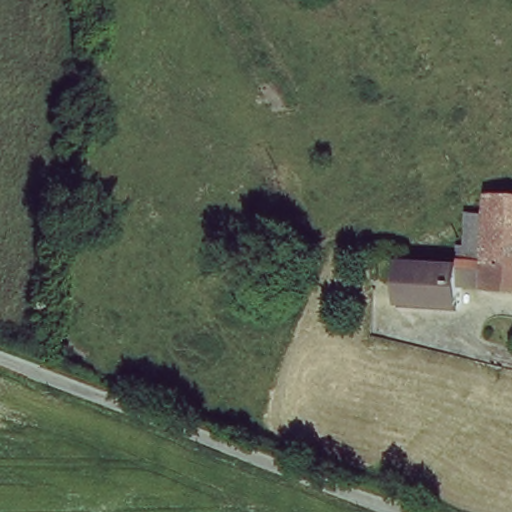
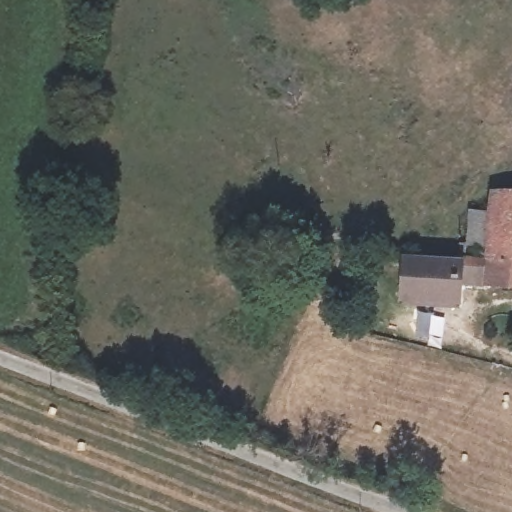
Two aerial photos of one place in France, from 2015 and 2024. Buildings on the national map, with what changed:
unchanged [(492,262),(494,213),(495,199),(512,200),(512,291),(490,290),(492,262)]
unchanged [(470,246),(473,214),(487,212),(494,213),(492,262),(466,261),(467,246),(470,246)]
unchanged [(408,265),(461,268),(462,260),(466,261),(492,262),(490,290),(461,289),(460,307),(406,305),(408,265)]

